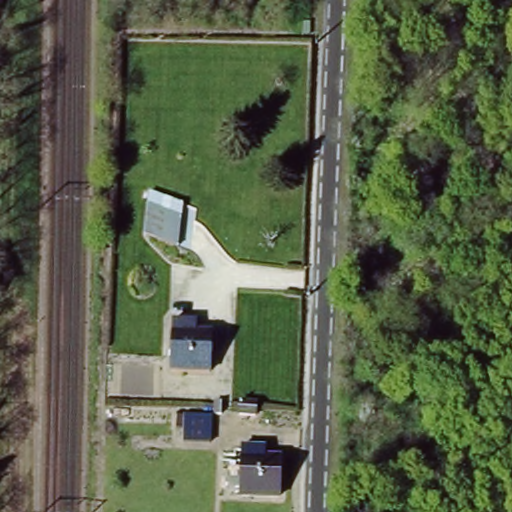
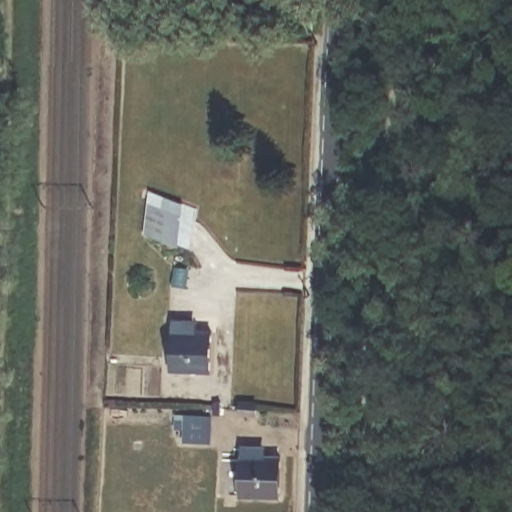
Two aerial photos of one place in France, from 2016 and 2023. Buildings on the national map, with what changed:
unchanged [(165,241),(136,231),(142,201),(171,212),(165,241)]
unchanged [(205,373),(166,371),(170,320),(191,321),(192,331),(208,332),(205,373)]
unchanged [(220,411),(213,411),(213,405),(213,396),(220,397),(220,406),(220,411)]
unchanged [(234,400),(251,400),(250,408),(250,413),(234,412),(234,408),(234,400)]
unchanged [(184,439),(185,413),(208,414),(207,441),(184,439)]
unchanged [(265,448),(264,460),(280,461),(277,498),(238,497),(243,448),(265,448)]

